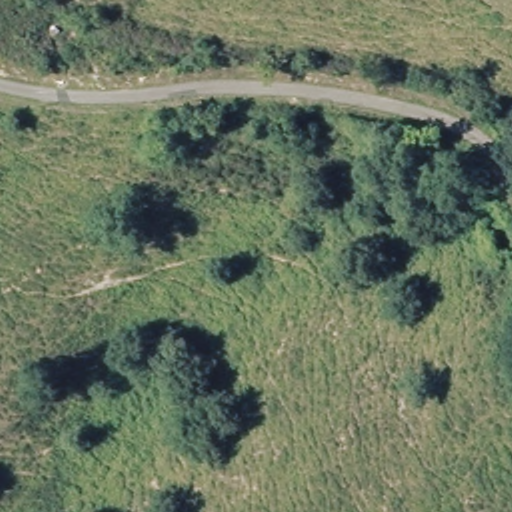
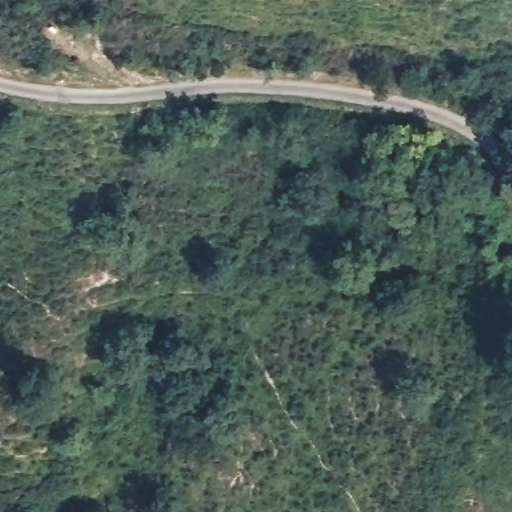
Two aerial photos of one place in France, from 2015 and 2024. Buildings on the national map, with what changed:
[]

